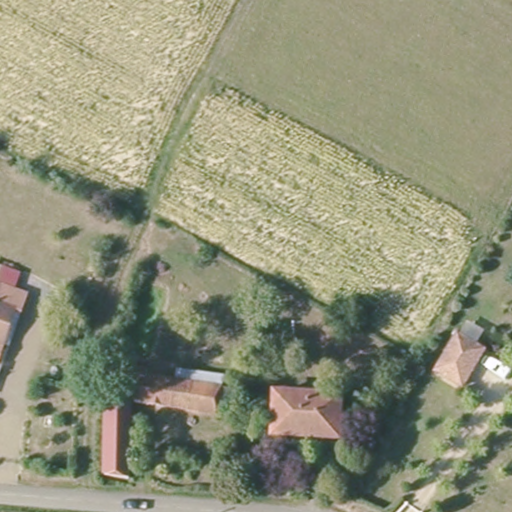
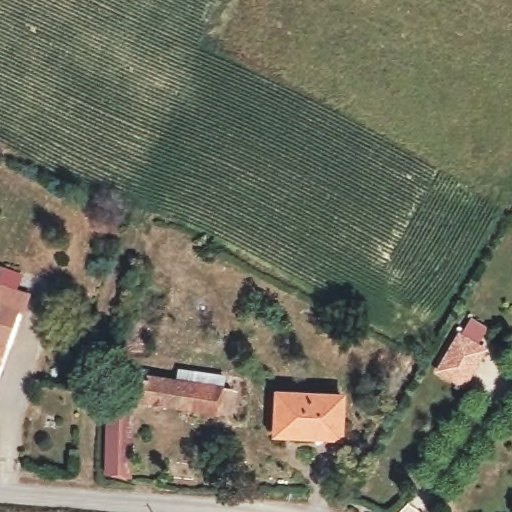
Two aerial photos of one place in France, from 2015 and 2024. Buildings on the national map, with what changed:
unchanged [(10,345),(4,343),(0,354),(0,288),(28,301),(10,345)]
unchanged [(466,388),(440,371),(461,334),(487,350),(466,388)]
unchanged [(228,407),(137,400),(138,369),(165,372),(165,383),(190,385),(191,370),(230,373),(230,387),(255,390),(253,409),(228,407)]
unchanged [(113,391),(125,392),(124,408),(136,408),(133,481),(110,479),(113,391)]
unchanged [(343,435),(277,433),(276,392),(346,394),(343,435)]

